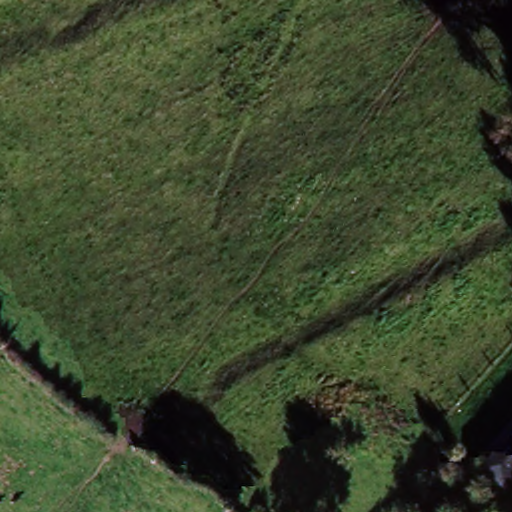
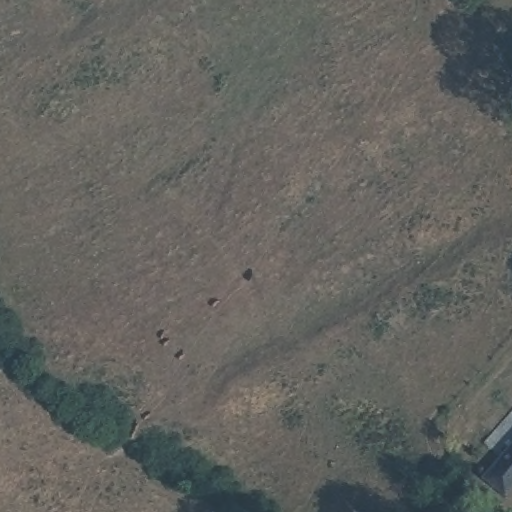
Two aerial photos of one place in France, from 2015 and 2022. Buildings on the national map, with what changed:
unchanged [(484,478),(512,447),(512,492),(506,498),(484,478)]

